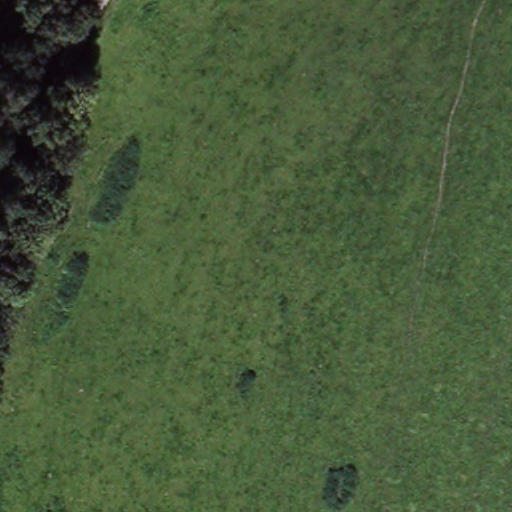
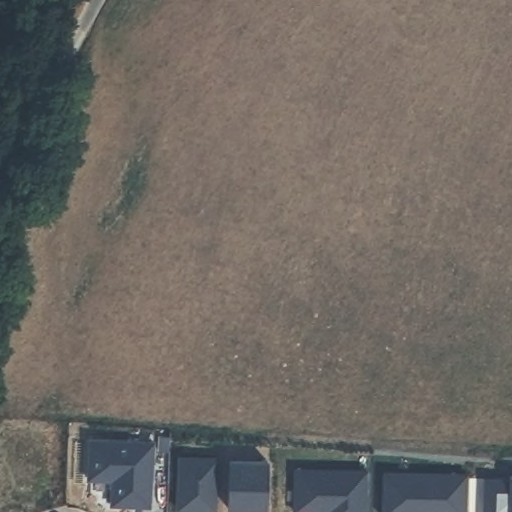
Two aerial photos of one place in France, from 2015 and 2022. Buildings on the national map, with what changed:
new [(87,441),(151,444),(149,508),(110,507),(111,482),(86,481),(87,441)]
new [(297,510),(297,467),(372,468),(372,512),(331,512),(331,510),(297,510)]
new [(487,472),(512,473),(512,512),(487,512),(487,472)]
new [(383,475),(471,475),(471,512),(383,512),(383,475)]

